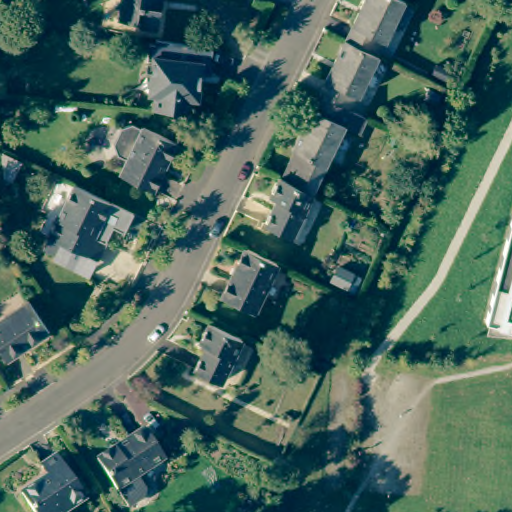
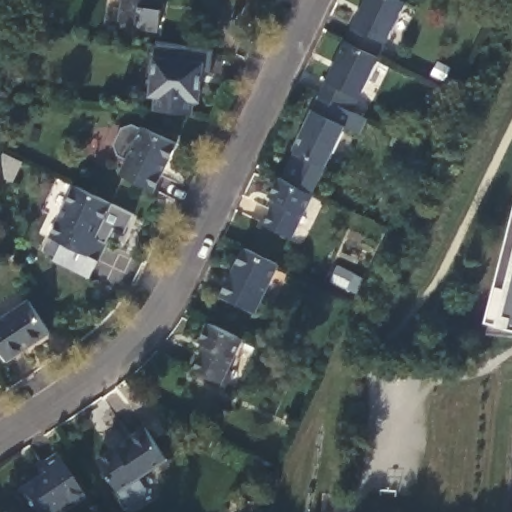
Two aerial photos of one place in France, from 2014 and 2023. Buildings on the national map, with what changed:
unchanged [(158,8),(159,11),(157,32),(140,30),(137,25),(120,22),(122,3),(120,0),(159,0),(158,8)]
unchanged [(407,0),(382,53),(348,37),(366,0),(407,0)]
unchanged [(355,108),(322,92),(348,37),(382,53),(355,108)]
unchanged [(148,56),(150,43),(210,51),(207,74),(200,75),(199,102),(189,102),(189,113),(156,112),(157,99),(148,99),(149,78),(145,78),(148,56)]
unchanged [(298,146),(296,145),(322,92),(355,108),(369,115),(362,129),(348,122),(316,190),(284,174),(298,146)]
unchanged [(127,157),(124,148),(133,129),(142,126),(151,130),(152,128),(184,144),(162,189),(130,174),(136,162),(127,157)]
unchanged [(295,232),(268,219),(280,195),(274,192),(283,173),(284,174),(316,190),(295,232)]
unchanged [(55,260),(63,244),(48,236),(73,186),(108,203),(92,236),(104,242),(95,259),(87,276),(55,260)]
unchanged [(512,330),(495,325),(485,323),(512,218),(512,330)]
unchanged [(253,311),(221,295),(243,249),(276,265),(253,311)]
unchanged [(27,302),(46,332),(5,359),(0,352),(0,320),(27,302)]
unchanged [(219,382),(192,369),(204,345),(198,343),(207,324),(240,340),(219,382)]
unchanged [(143,429),(145,428),(166,459),(139,477),(147,489),(145,497),(129,508),(117,489),(97,460),(143,429)]
unchanged [(84,497),(63,511),(63,512),(33,512),(21,493),(48,474),(42,465),(56,455),(84,497)]

